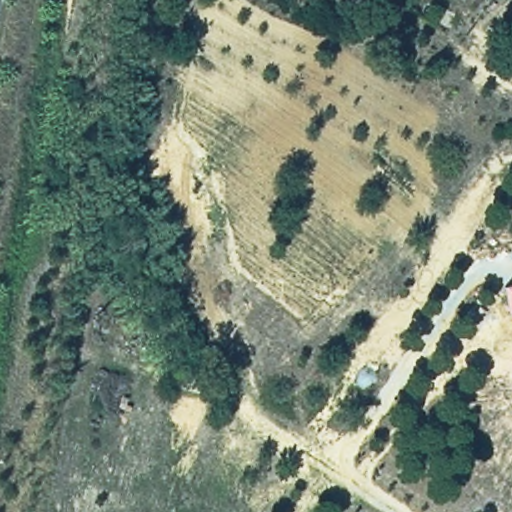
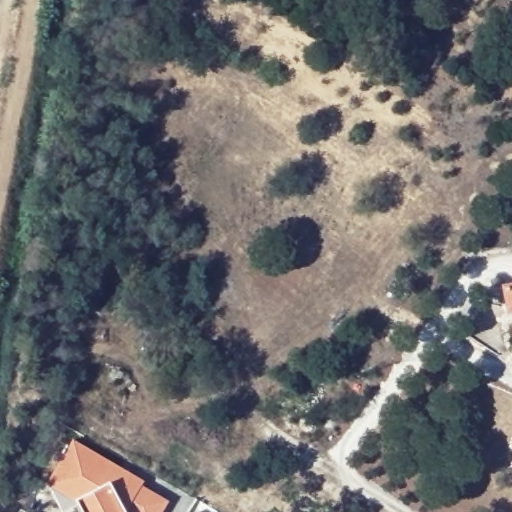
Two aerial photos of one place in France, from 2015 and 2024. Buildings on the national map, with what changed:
new [(512,312),(504,313),(501,287),(512,285),(512,312)]
new [(49,491),(44,485),(73,438),(146,482),(143,485),(169,501),(163,512),(61,512),(49,491)]
new [(20,508),(29,512),(18,512),(20,508)]

